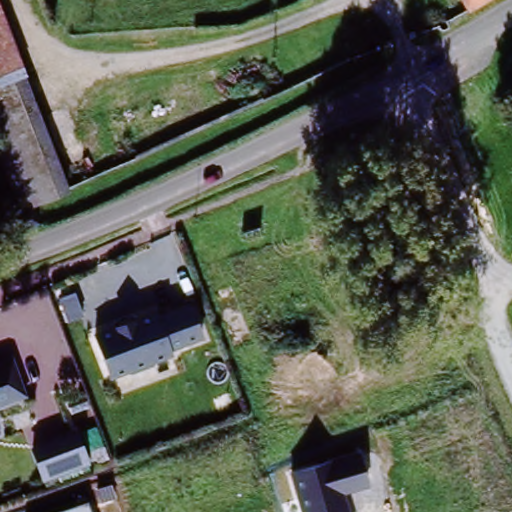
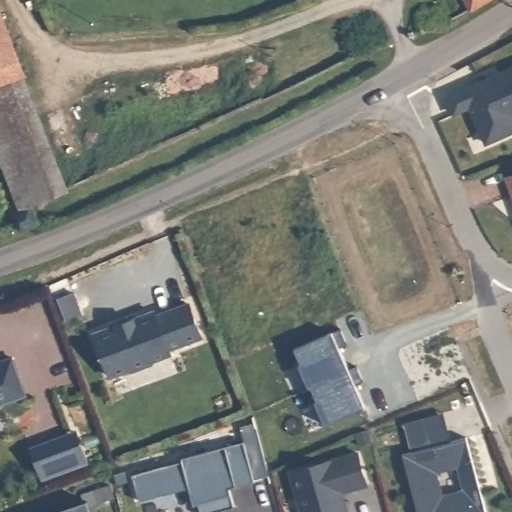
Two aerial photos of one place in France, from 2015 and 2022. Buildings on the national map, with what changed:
unchanged [(473,12),(466,0),(494,0),(473,12)]
unchanged [(20,212),(0,155),(0,1),(72,192),(20,212)]
new [(487,147),(469,109),(454,117),(445,97),(512,67),(512,135),(487,147)]
new [(507,179),(512,176),(512,193),(507,179)]
unchanged [(203,340),(171,353),(173,357),(109,380),(92,337),(113,328),(111,323),(156,307),(158,313),(189,302),(203,340)]
unchanged [(0,365),(8,362),(22,398),(0,407),(0,365)]
new [(216,410),(213,401),(224,397),(228,405),(216,410)]
new [(467,441),(486,512),(420,512),(406,453),(413,452),(404,422),(444,412),(453,443),(467,441)]
unchanged [(86,467),(38,482),(25,449),(74,432),(86,467)]
new [(256,482),(236,487),(230,489),(233,497),(236,508),(217,512),(201,512),(199,506),(193,507),(189,491),(141,503),(134,477),(183,463),(183,461),(226,449),(244,443),(258,442),(269,480),(256,482)]
unchanged [(361,453),(369,486),(344,494),(349,512),(302,512),(290,472),(361,453)]
new [(108,489),(113,504),(96,508),(92,494),(108,489)]
unchanged [(92,512),(55,512),(88,502),(92,512)]

